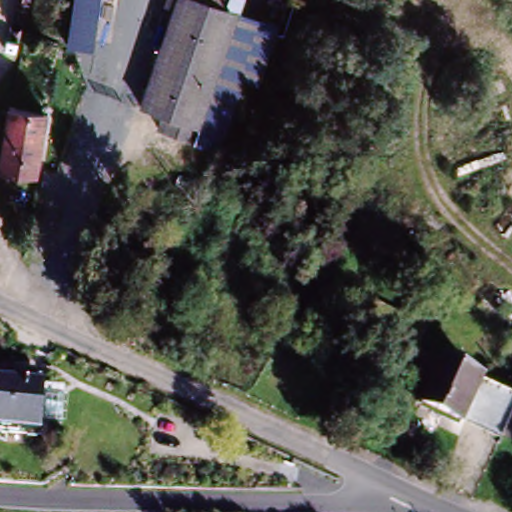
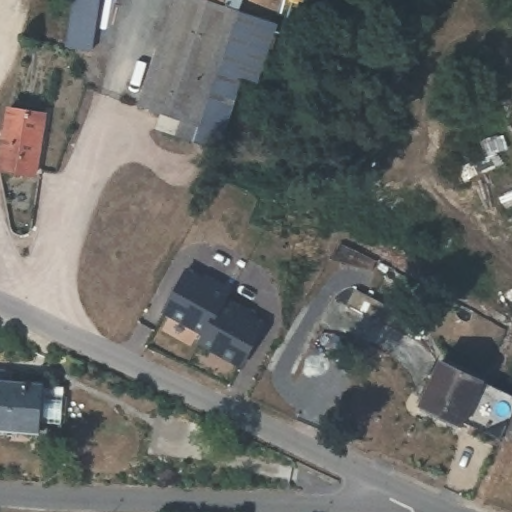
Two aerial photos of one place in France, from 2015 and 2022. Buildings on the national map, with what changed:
unchanged [(106,0),(100,50),(72,50),(75,0),(106,0)]
unchanged [(207,0),(241,14),(192,146),(151,134),(158,116),(135,110),(172,0),(207,0)]
unchanged [(241,14),(283,28),(268,85),(251,80),(224,155),(192,146),(241,14)]
unchanged [(32,175),(0,170),(0,136),(3,113),(40,120),(32,175)]
new [(188,268),(215,283),(217,279),(230,287),(225,296),(238,304),(237,308),(263,322),(240,364),(198,341),(203,332),(162,310),(188,268)]
unchanged [(355,285),(425,321),(418,335),(348,299),(355,285)]
unchanged [(458,419),(457,424),(417,405),(437,362),(478,381),(458,419)]
unchanged [(19,383),(40,385),(30,432),(0,430),(0,369),(20,370),(19,383)]
unchanged [(512,397),(512,404),(496,437),(458,419),(478,381),(512,397)]
unchanged [(40,385),(57,386),(57,388),(72,389),(72,398),(77,399),(75,426),(55,425),(54,434),(30,432),(40,385)]
unchanged [(496,437),(512,404),(512,445),(496,437)]

